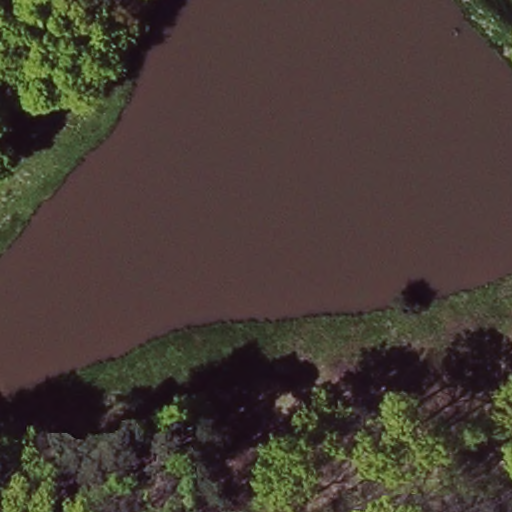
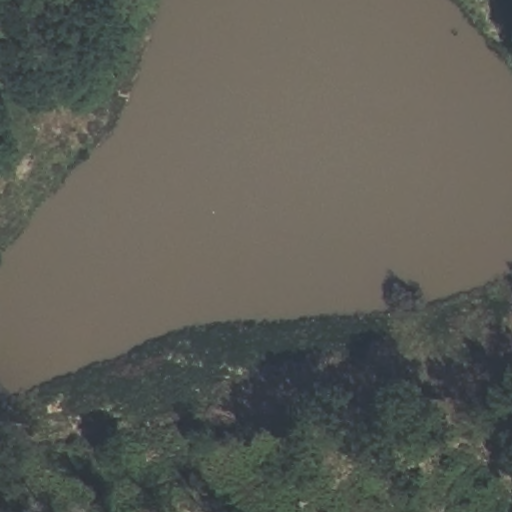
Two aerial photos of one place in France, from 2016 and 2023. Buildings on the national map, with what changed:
[]

